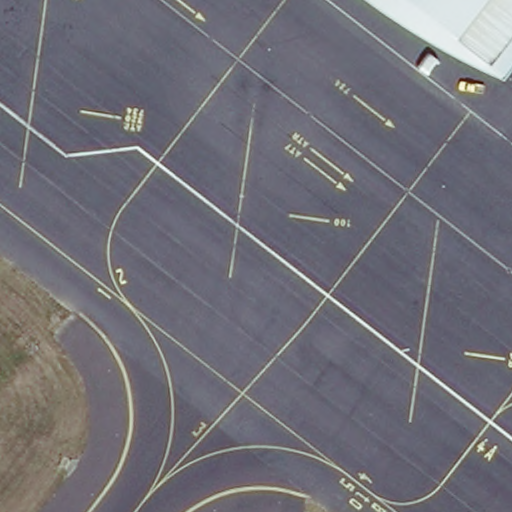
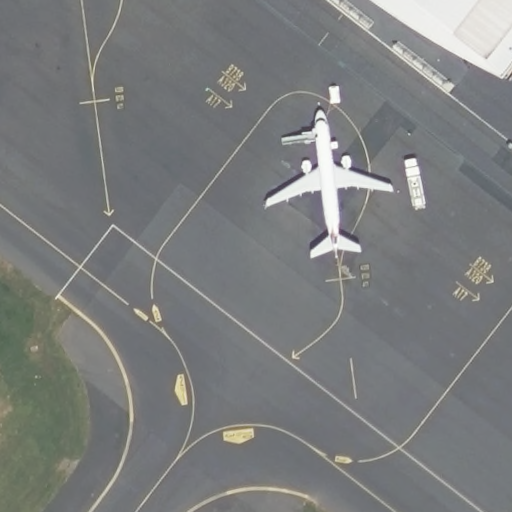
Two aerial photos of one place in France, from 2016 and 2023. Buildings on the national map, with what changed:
unchanged [(478,67),(460,58),(431,42),(384,11),(370,0),(512,0),(512,65),(501,79),(493,74),(478,67)]

